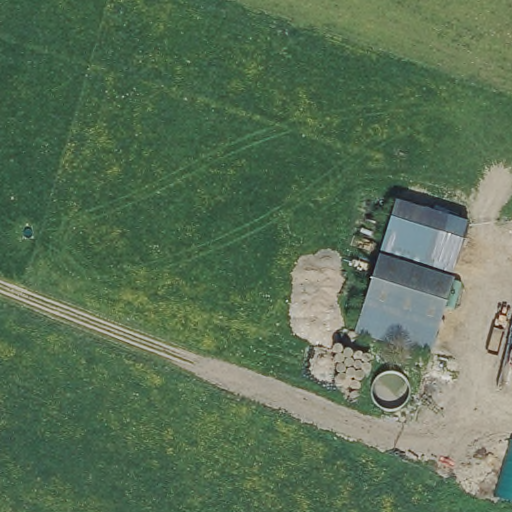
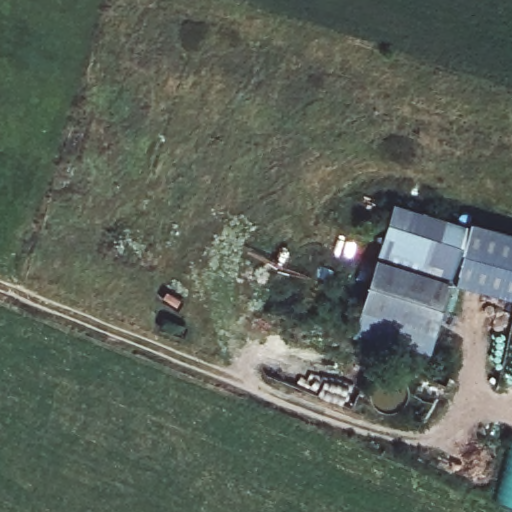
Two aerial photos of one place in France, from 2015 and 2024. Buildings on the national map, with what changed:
unchanged [(470,222),(454,278),(428,358),(354,333),(380,254),(397,200),(470,222)]
new [(457,280),(474,220),(512,230),(512,296),(457,280)]
unchanged [(512,441),(512,502),(495,497),(511,440),(512,441)]

